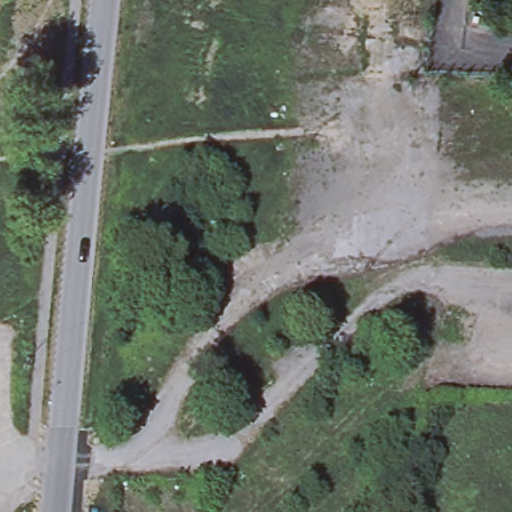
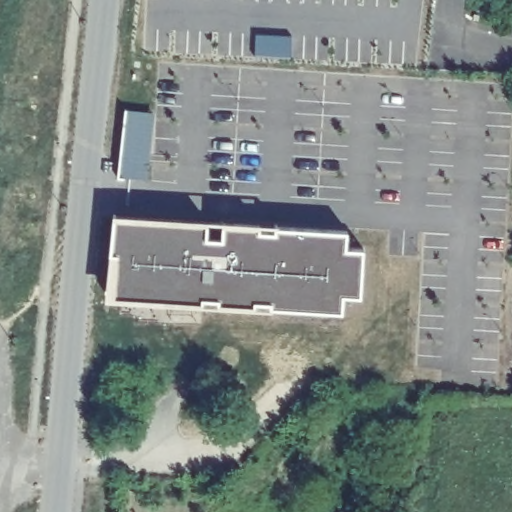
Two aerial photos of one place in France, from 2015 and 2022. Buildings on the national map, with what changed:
new [(124,109),(155,114),(147,182),(115,177),(124,109)]
new [(114,215),(346,230),(345,249),(362,250),(359,297),(342,296),(340,313),(105,300),(114,215)]

